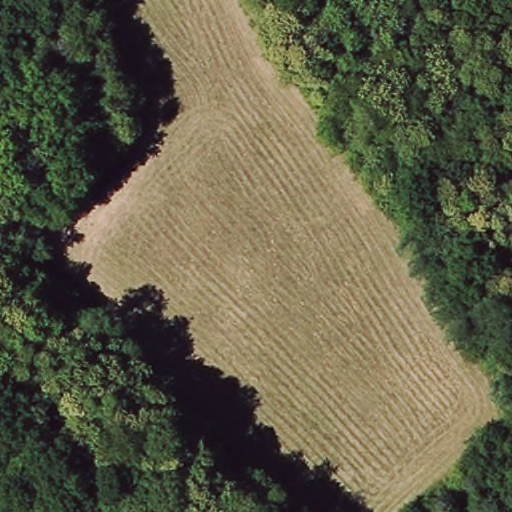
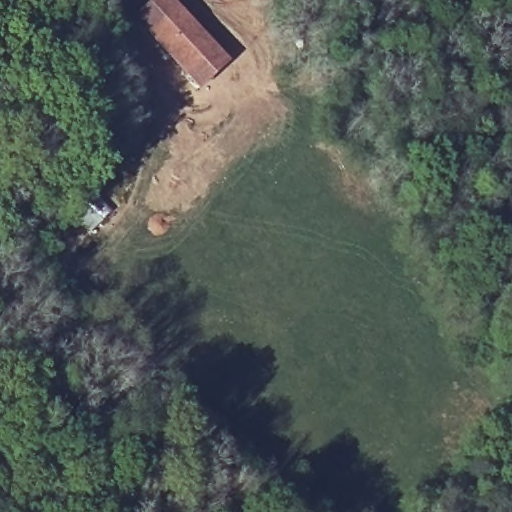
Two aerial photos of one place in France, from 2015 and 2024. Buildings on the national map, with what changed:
new [(229,65),(198,94),(130,21),(152,0),(167,0),(229,65)]

